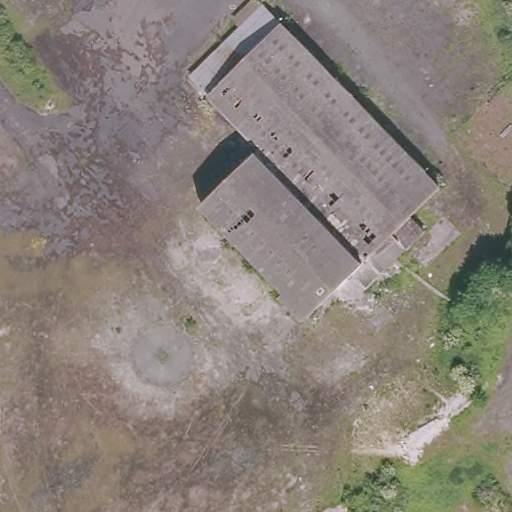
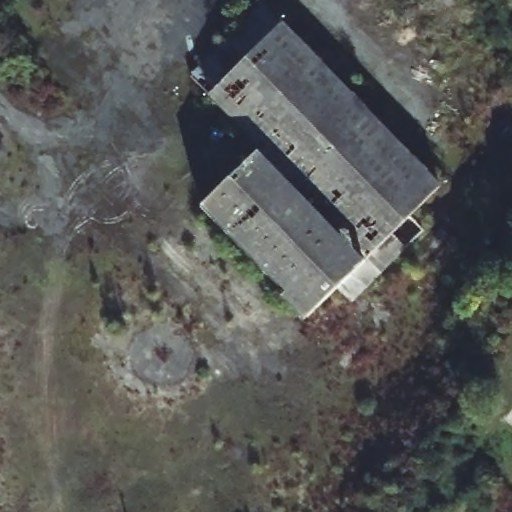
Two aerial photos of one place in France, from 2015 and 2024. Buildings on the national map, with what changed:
unchanged [(370,264),(355,277),(390,321),(352,353),(197,205),(257,152),(207,92),(188,72),(262,4),(280,21),(437,189),(370,264)]

